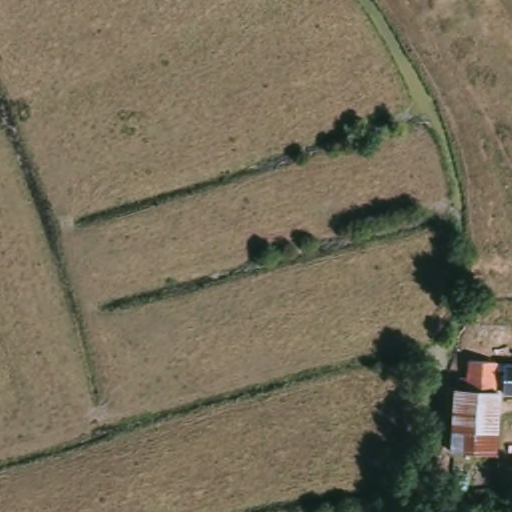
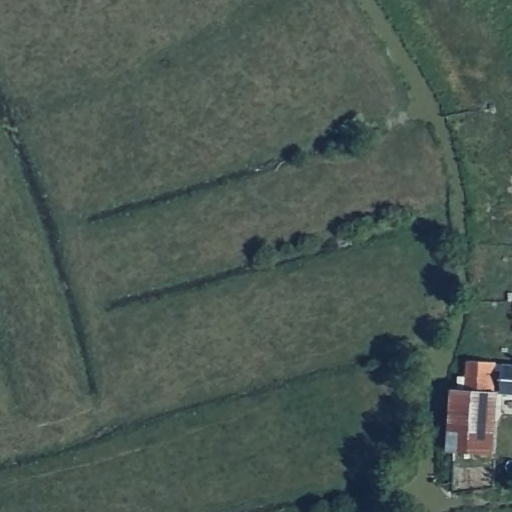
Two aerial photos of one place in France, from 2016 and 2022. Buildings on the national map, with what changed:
unchanged [(489,364),(488,366),(512,367),(512,395),(492,393),(460,392),(462,362),(489,364)]
unchanged [(489,457),(444,454),(448,391),(460,392),(492,393),(489,457)]

